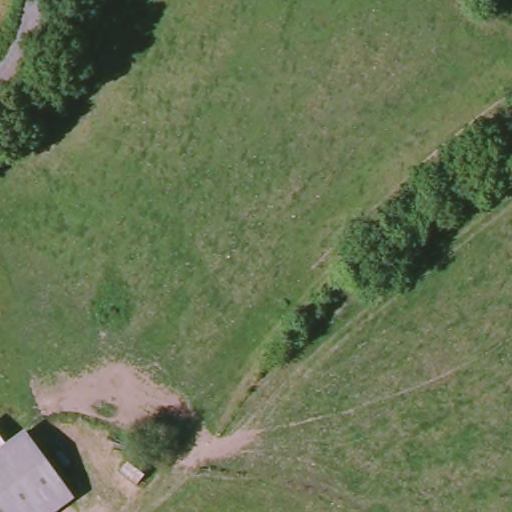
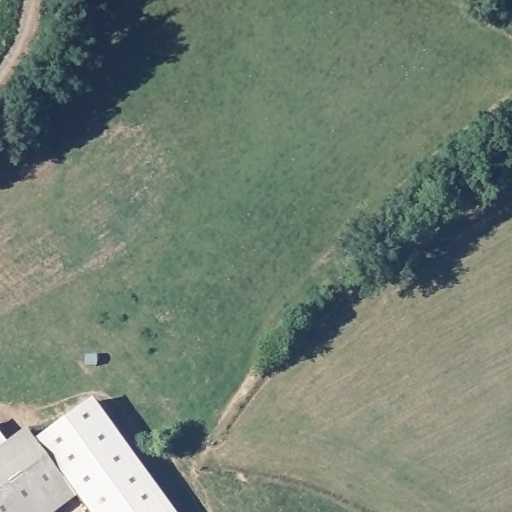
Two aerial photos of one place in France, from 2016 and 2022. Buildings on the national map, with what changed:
new [(91,401),(171,512),(85,512),(68,490),(33,443),(91,401)]
unchanged [(0,458),(0,435),(12,450),(0,458)]
unchanged [(0,458),(28,437),(68,490),(39,512),(0,512),(0,458)]

